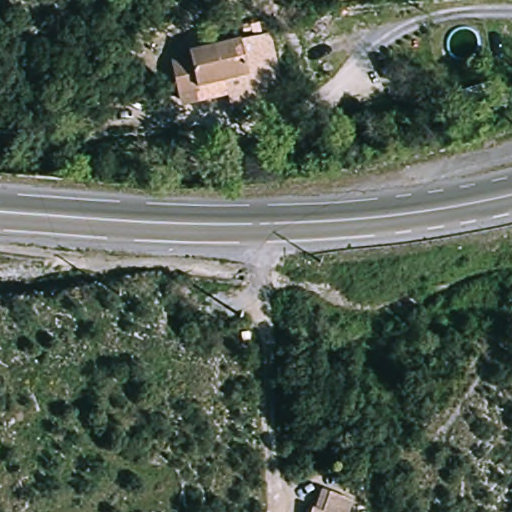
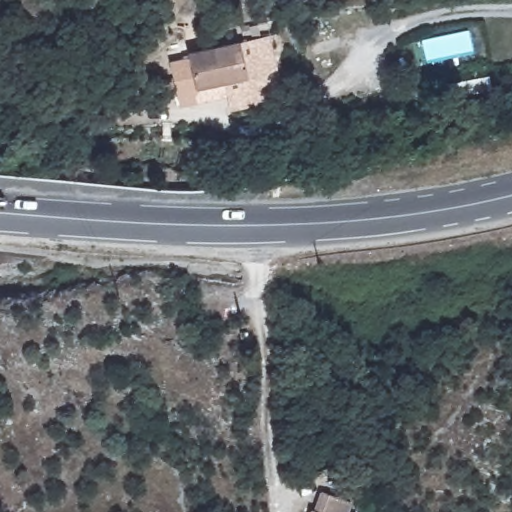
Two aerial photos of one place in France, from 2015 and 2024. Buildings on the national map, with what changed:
unchanged [(207,17),(226,15),(228,34),(209,36),(207,17)]
unchanged [(199,89),(176,92),(172,62),(193,59),(192,52),(245,45),(249,73),(250,82),(199,89)]

